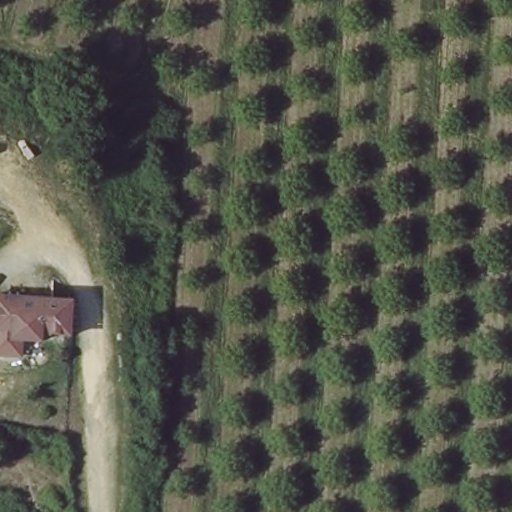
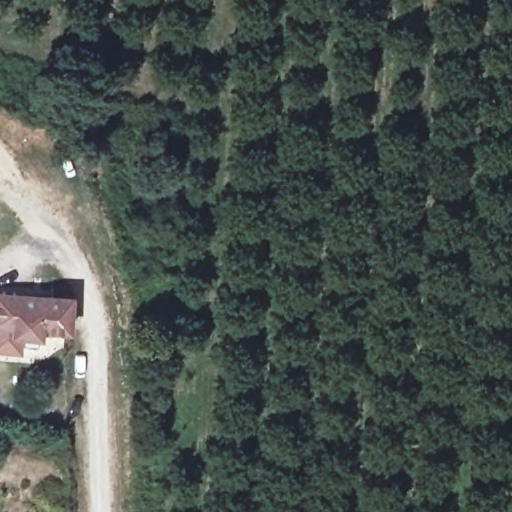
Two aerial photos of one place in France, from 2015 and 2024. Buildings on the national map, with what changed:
unchanged [(42,339),(23,339),(23,355),(0,354),(0,299),(73,300),(72,333),(43,333),(42,339)]

